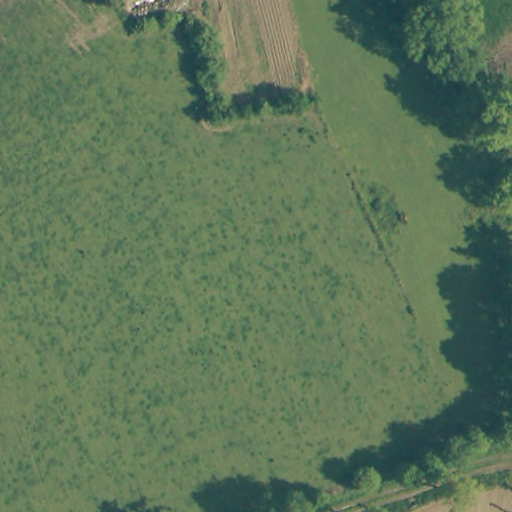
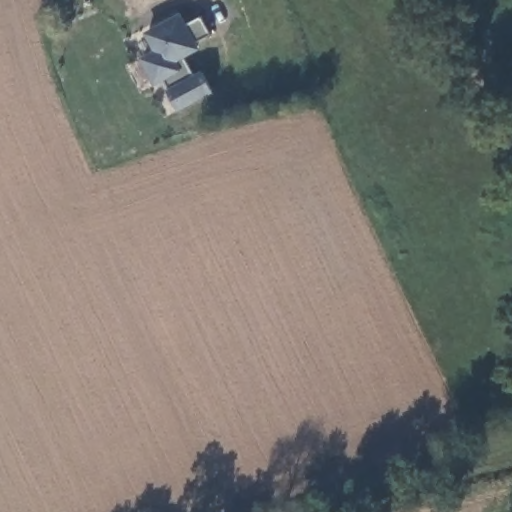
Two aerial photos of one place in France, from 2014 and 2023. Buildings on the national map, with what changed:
new [(167,90),(169,89),(163,77),(155,81),(143,57),(156,50),(147,32),(180,15),(184,24),(201,15),(212,33),(194,43),(196,47),(184,54),(195,75),(202,71),(212,90),(177,109),(167,90)]

